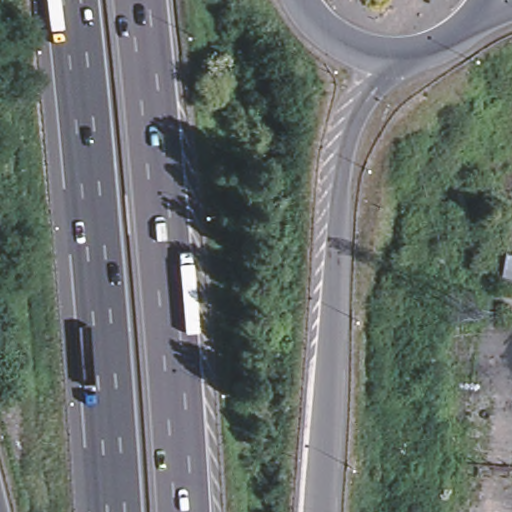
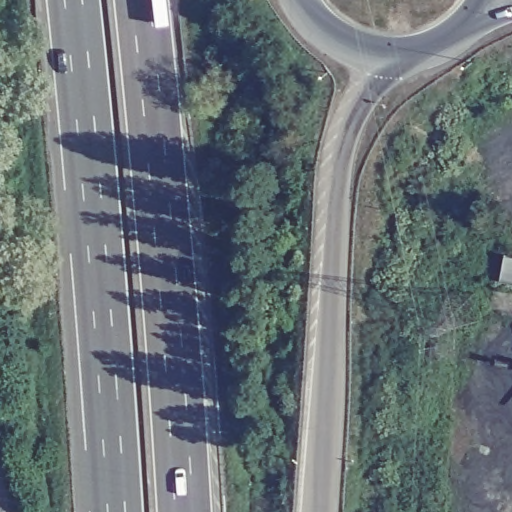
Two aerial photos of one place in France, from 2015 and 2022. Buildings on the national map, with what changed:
unchanged [(512,255),(512,284),(500,283),(505,254),(512,255)]

